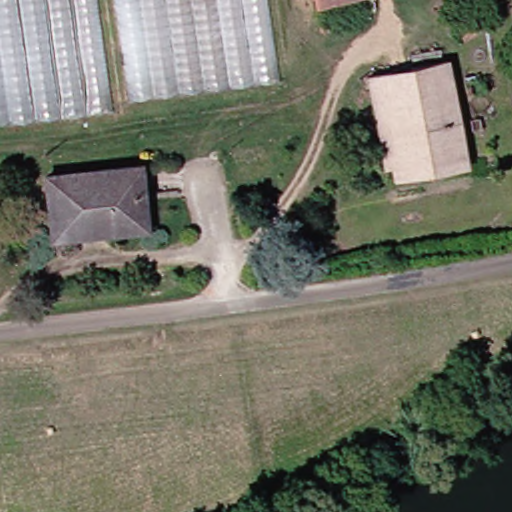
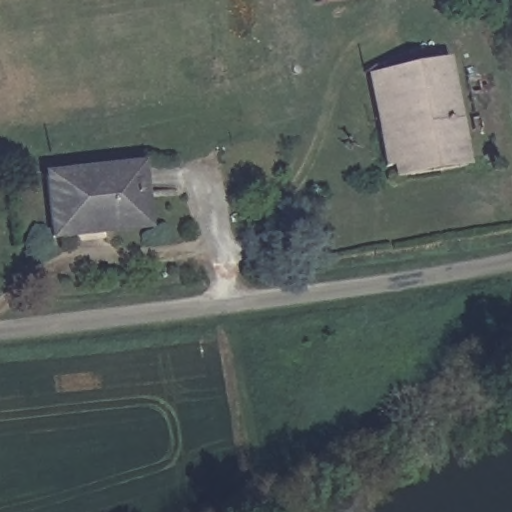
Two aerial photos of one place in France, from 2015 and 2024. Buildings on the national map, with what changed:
demolished [(0,124),(0,0),(99,0),(115,110),(0,124)]
demolished [(269,0),(280,80),(132,102),(116,0),(269,0)]
unchanged [(391,178),(390,166),(384,167),(378,131),(416,121),(407,67),(406,62),(442,55),(455,117),(478,111),(486,146),(463,150),(465,162),(391,178)]
unchanged [(416,121),(378,131),(366,76),(407,67),(416,121)]
unchanged [(477,74),(480,90),(466,93),(462,76),(477,74)]
unchanged [(151,230),(80,237),(55,239),(50,174),(143,166),(147,204),(150,221),(151,230)]

